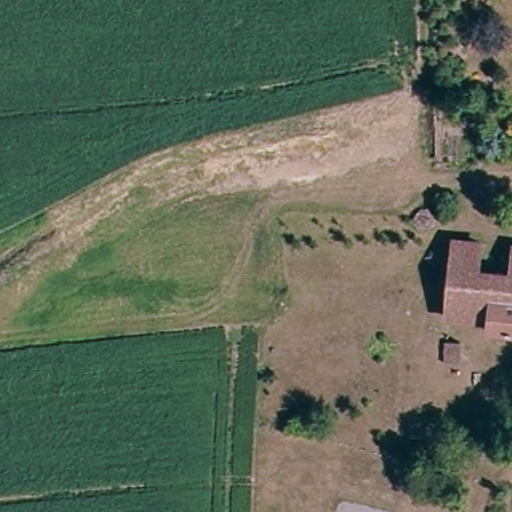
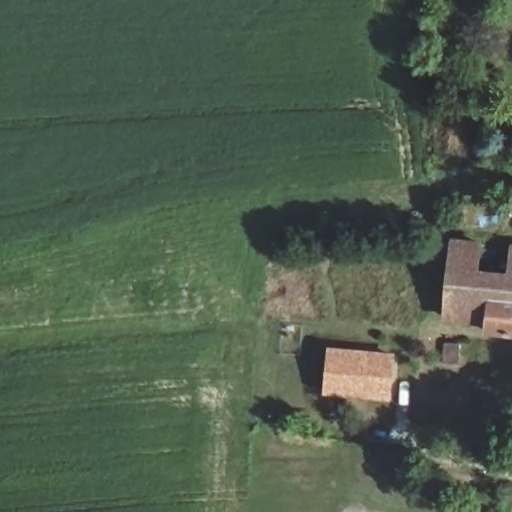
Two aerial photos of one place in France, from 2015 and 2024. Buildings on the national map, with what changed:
unchanged [(487,316),(446,312),(453,236),(480,238),(477,266),(511,270),(512,259),(512,328),(486,325),(487,316)]
unchanged [(460,343),(460,365),(445,364),(446,342),(460,343)]
new [(326,344),(395,351),(390,401),(321,394),(326,344)]

